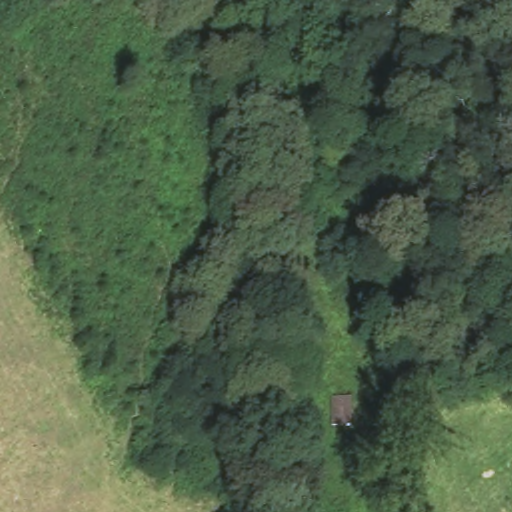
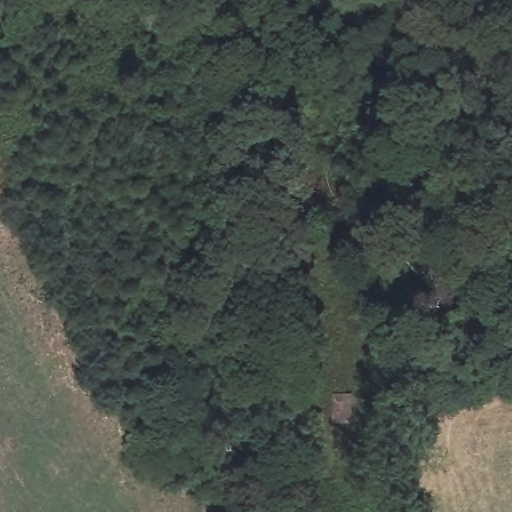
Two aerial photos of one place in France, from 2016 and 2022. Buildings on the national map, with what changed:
unchanged [(347,396),(350,428),(329,429),(328,397),(347,396)]

